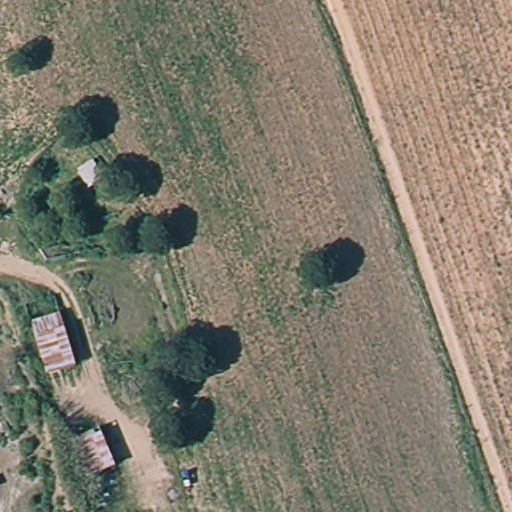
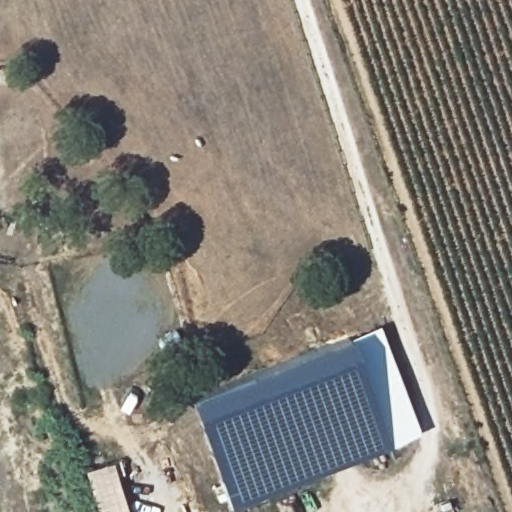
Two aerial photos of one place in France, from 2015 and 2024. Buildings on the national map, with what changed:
demolished [(75,365),(45,374),(31,321),(58,313),(75,365)]
new [(187,399),(349,337),(391,446),(230,508),(187,399)]
demolished [(114,468),(85,479),(70,440),(99,428),(114,468)]
new [(112,461),(126,512),(97,512),(84,471),(112,461)]

